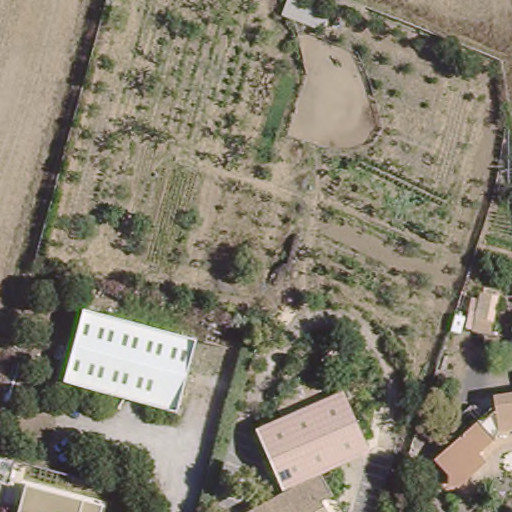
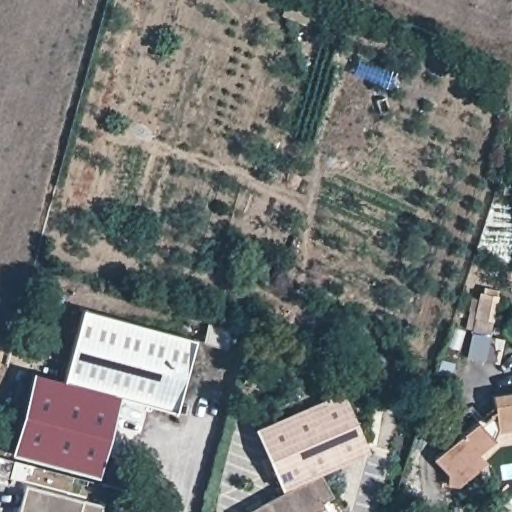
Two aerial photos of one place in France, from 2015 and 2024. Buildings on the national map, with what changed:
unchanged [(505,272),(512,271),(512,282),(506,282),(505,272)]
unchanged [(492,320),(474,317),(479,294),(497,297),(492,320)]
unchanged [(175,412),(62,382),(82,309),(195,340),(175,412)]
new [(21,457),(12,455),(32,372),(63,380),(62,382),(119,397),(98,477),(21,457)]
unchanged [(368,451),(281,489),(255,430),(342,392),(368,451)]
unchanged [(470,451),(480,462),(453,487),(442,486),(442,475),(428,459),(471,421),(474,424),(490,410),(487,396),(512,393),(512,428),(493,430),(470,451)]
unchanged [(480,462),(470,451),(493,430),(512,428),(512,445),(497,447),(480,462)]
new [(23,458),(18,477),(0,472),(0,452),(23,458)]
unchanged [(253,512),(320,474),(330,493),(320,499),(327,512),(253,512)]
unchanged [(100,505),(98,512),(15,512),(22,486),(100,505)]

